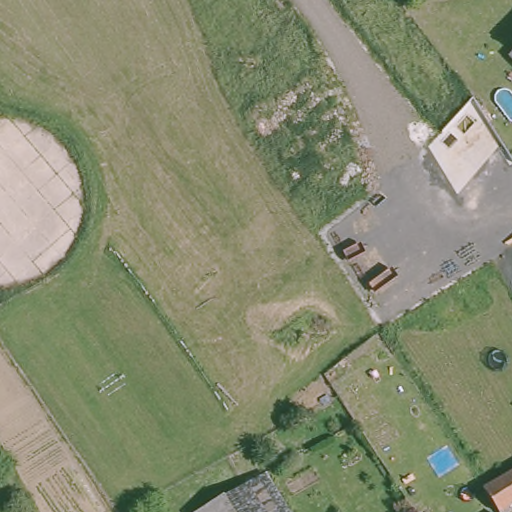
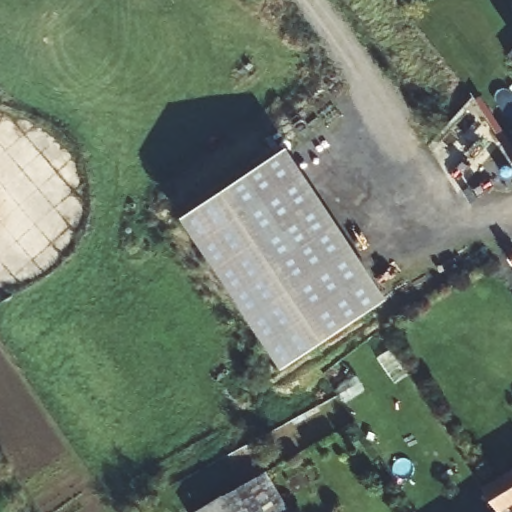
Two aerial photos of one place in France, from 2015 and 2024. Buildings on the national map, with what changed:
unchanged [(508,58),(512,53),(512,62),(508,58)]
demolished [(506,66),(512,59),(512,73),(506,66)]
demolished [(512,82),(512,84),(511,83),(512,82)]
new [(285,367),(183,219),(288,148),(387,301),(285,367)]
unchanged [(485,486),(512,468),(512,512),(501,512),(485,486)]
unchanged [(272,470),(295,512),(194,512),(194,511),(272,470)]

